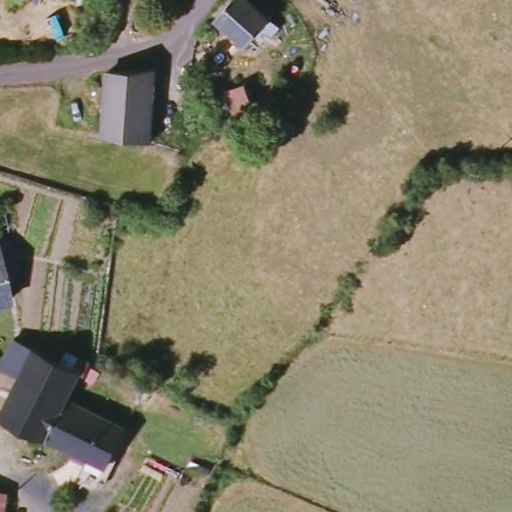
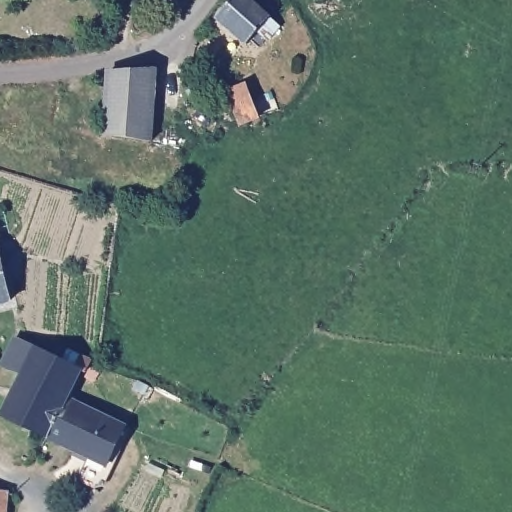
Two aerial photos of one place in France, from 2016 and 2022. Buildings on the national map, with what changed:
unchanged [(263,38),(254,29),(242,42),(212,15),(226,0),(249,0),(266,14),(276,24),(263,38)]
unchanged [(249,0),(280,0),(266,14),(249,0)]
unchanged [(148,143),(101,135),(106,73),(154,69),(148,143)]
unchanged [(246,87),(260,120),(241,126),(229,92),(246,87)]
unchanged [(0,304),(0,256),(12,302),(0,304)]
unchanged [(129,422),(101,479),(85,474),(91,452),(51,433),(4,409),(21,369),(3,362),(19,333),(40,343),(65,356),(71,346),(94,358),(90,369),(85,367),(72,394),(129,422)]
unchanged [(0,491),(11,492),(9,512),(0,512),(0,491)]

